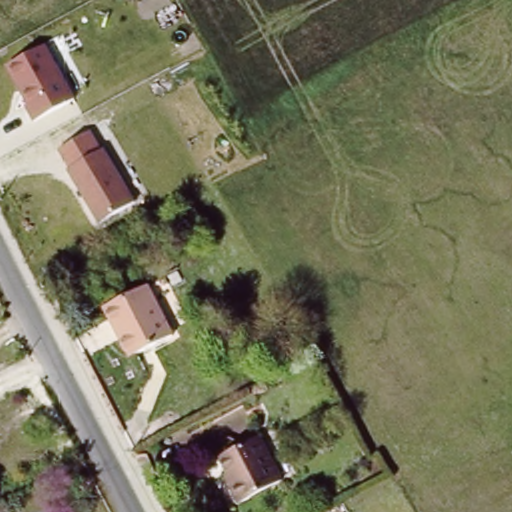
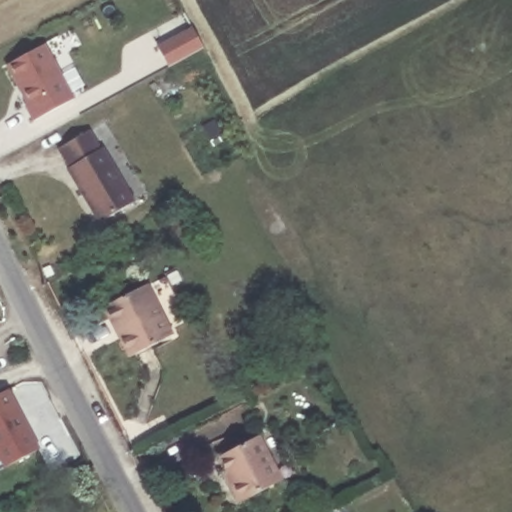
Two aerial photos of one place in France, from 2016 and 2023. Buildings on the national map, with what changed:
unchanged [(75,99),(32,121),(21,104),(27,101),(6,61),(43,41),(75,99)]
unchanged [(99,149),(103,146),(137,204),(99,225),(63,169),(67,166),(58,149),(87,130),(99,149)]
unchanged [(143,285),(172,336),(130,360),(101,309),(143,285)]
new [(10,390),(41,448),(4,467),(0,460),(0,395),(10,390)]
unchanged [(228,486),(223,477),(214,460),(253,439),(277,484),(234,507),(224,488),(228,486)]
unchanged [(2,512),(0,512),(0,507),(2,512)]

